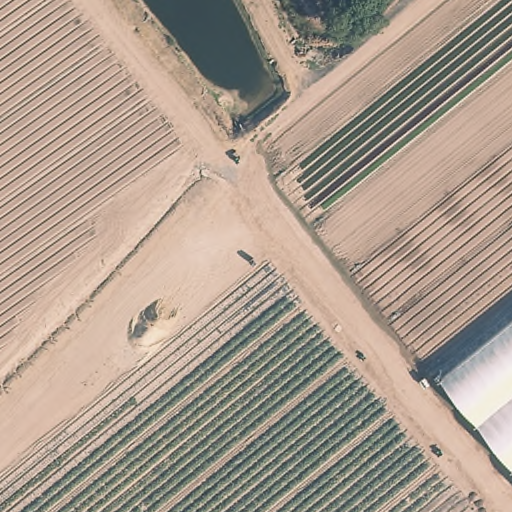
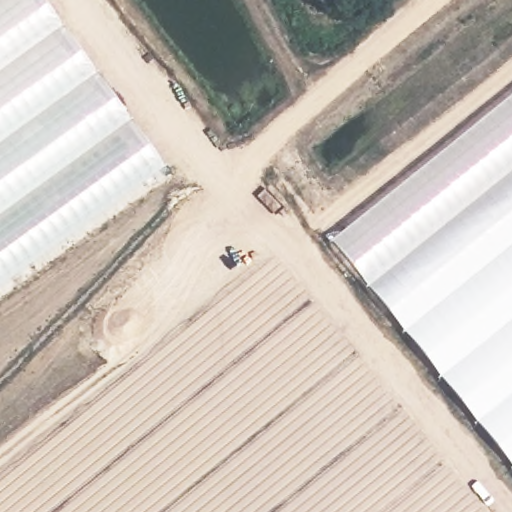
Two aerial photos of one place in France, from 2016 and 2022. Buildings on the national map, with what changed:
new [(166,170),(0,290),(0,0),(43,0),(166,170)]
new [(512,316),(437,377),(332,242),(512,97),(512,316)]
unchanged [(512,470),(437,377),(512,316),(512,470)]

